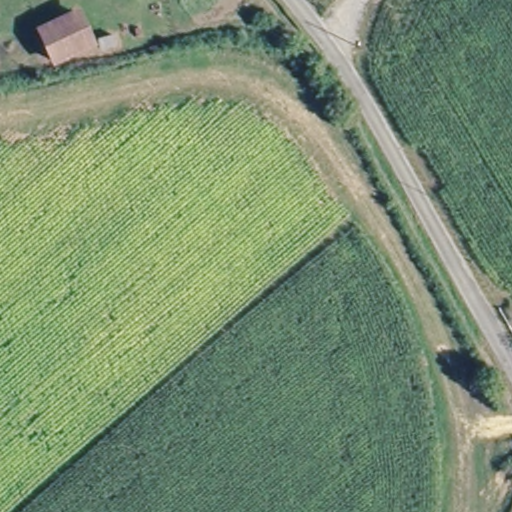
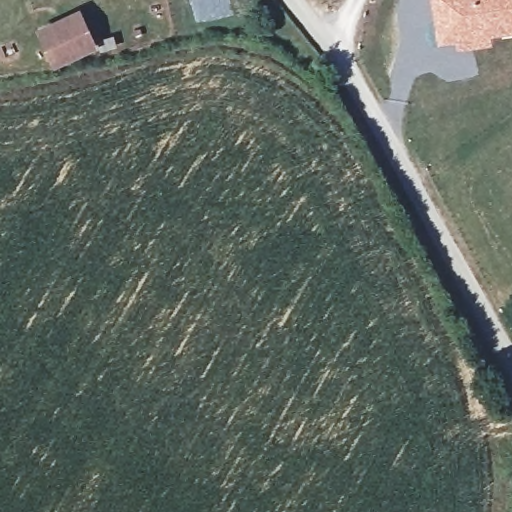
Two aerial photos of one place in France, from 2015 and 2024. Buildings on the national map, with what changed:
new [(491,43),(457,48),(455,41),(437,44),(431,0),(512,0),(512,31),(490,34),(491,43)]
unchanged [(44,58),(32,30),(40,27),(72,15),(84,42),(53,58),(44,58)]

